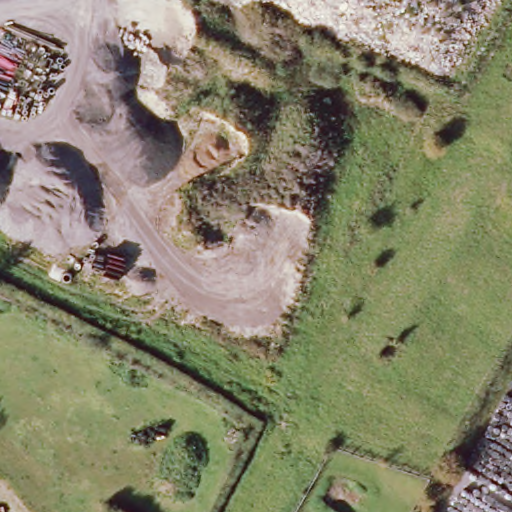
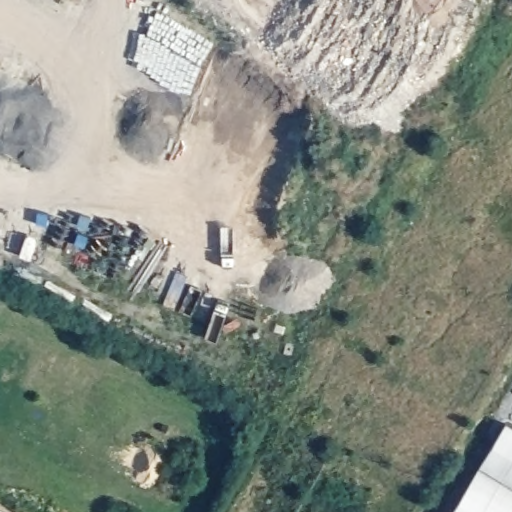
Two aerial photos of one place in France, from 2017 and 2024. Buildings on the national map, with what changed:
new [(505,421),(512,425),(512,512),(450,512),(505,421)]
new [(0,509),(6,512),(0,512),(0,509)]

